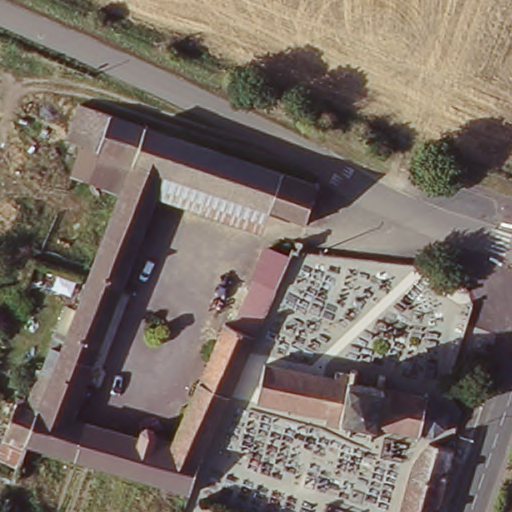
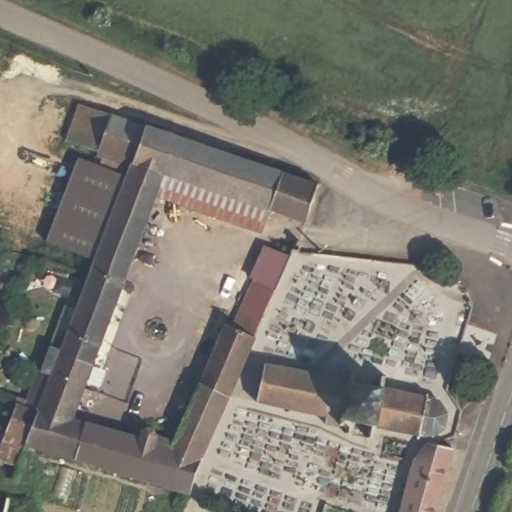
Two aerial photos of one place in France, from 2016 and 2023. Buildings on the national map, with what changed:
unchanged [(28,445),(14,438),(11,437),(26,400),(36,403),(58,346),(69,351),(98,271),(137,164),(76,142),(88,105),(325,185),(314,222),(282,212),(174,175),(166,197),(81,421),(123,435),(126,426),(154,435),(151,440),(176,443),(206,376),(243,292),(247,293),(256,270),(264,273),(274,249),(294,258),(277,299),(231,411),(193,496),(28,448),(28,445)]
new [(101,265),(46,242),(77,157),(131,180),(101,265)]
unchanged [(273,234),(166,197),(174,175),(282,212),(273,234)]
unchanged [(422,441),(421,451),(414,450),(415,445),(384,439),(382,448),(374,447),(375,437),(361,433),(360,443),(350,442),(353,430),(344,430),(343,431),(328,428),(331,420),(301,413),(300,419),(293,417),(295,412),(263,404),(273,364),(342,380),(344,371),(355,374),(357,366),(367,370),(364,386),(385,391),(387,375),(400,378),(396,394),(426,401),(428,395),(436,396),(434,403),(441,405),(451,417),(447,432),(430,444),(422,441)]
unchanged [(423,463),(438,447),(443,449),(461,443),(455,465),(439,512),(407,512),(423,463)]

